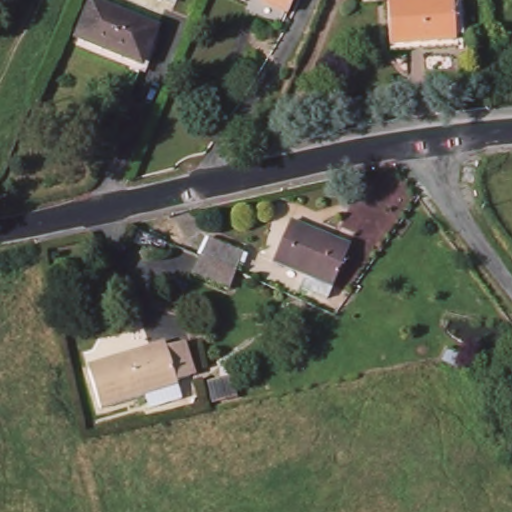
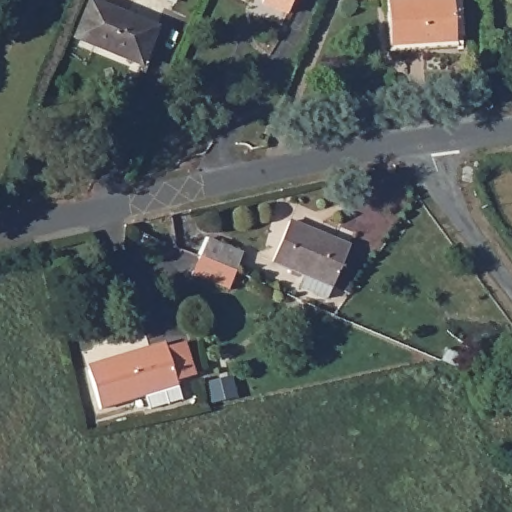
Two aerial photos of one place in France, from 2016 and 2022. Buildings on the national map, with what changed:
unchanged [(270,0),(297,0),(292,14),(269,4),(270,0)]
unchanged [(444,0),(462,0),(464,44),(387,48),(384,4),(444,0)]
unchanged [(94,2),(101,5),(163,27),(146,68),(85,44),(79,41),(94,2)]
unchanged [(308,288),(310,283),(315,273),(280,255),(296,218),(356,245),(340,281),(344,283),(338,295),(335,300),(308,288)]
unchanged [(209,236),(247,252),(243,260),(238,273),(231,291),(193,277),(201,256),(207,242),(209,236)]
unchanged [(145,413),(143,398),(101,407),(94,366),(119,361),(118,355),(168,344),(169,348),(189,345),(198,380),(178,384),(183,405),(145,413)]

